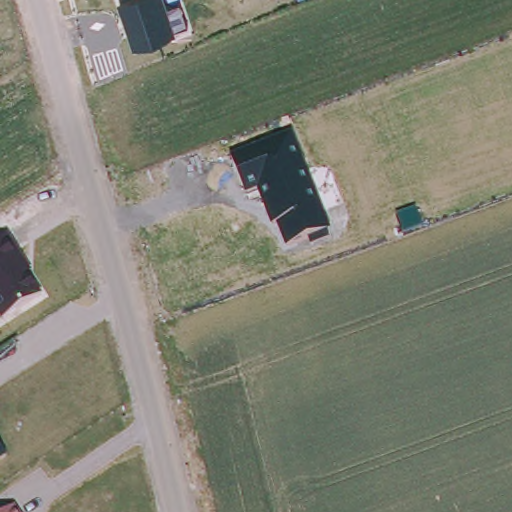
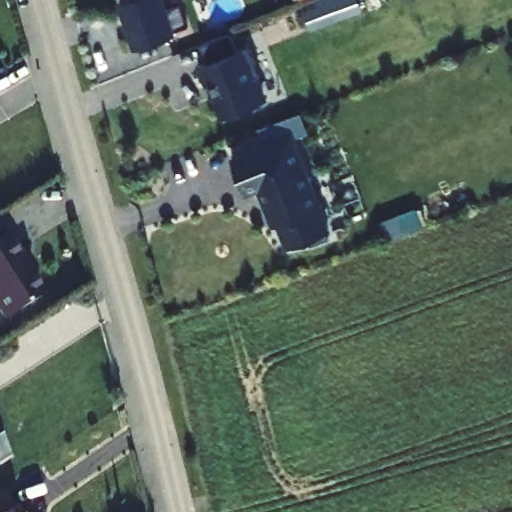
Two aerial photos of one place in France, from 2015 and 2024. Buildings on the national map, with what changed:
unchanged [(133,50),(117,0),(163,0),(175,35),(133,50)]
new [(203,66),(195,48),(227,35),(234,54),(244,50),(256,79),(251,80),(260,105),(220,121),(206,88),(202,90),(194,70),(203,66)]
unchanged [(332,231),(287,250),(277,224),(272,226),(258,189),(245,194),(230,157),(293,132),(332,231)]
unchanged [(43,295),(2,320),(0,318),(0,240),(5,236),(43,295)]
unchanged [(0,462),(0,441),(8,456),(0,462)]
unchanged [(17,506),(20,512),(8,512),(17,506)]

